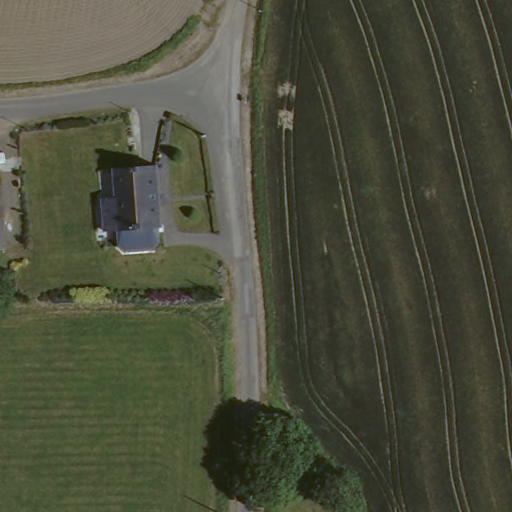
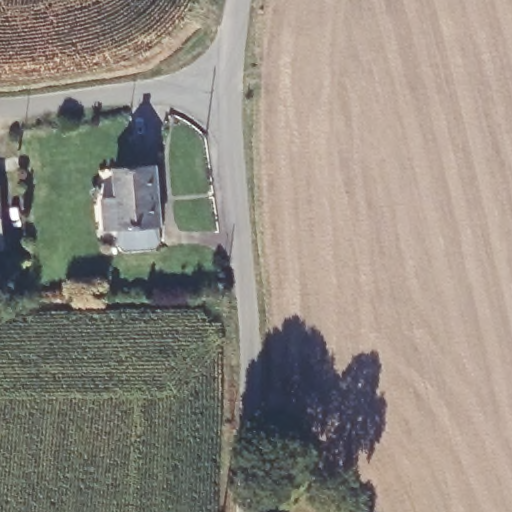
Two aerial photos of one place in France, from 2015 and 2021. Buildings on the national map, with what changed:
unchanged [(123,195),(119,165),(162,160),(169,220),(111,226),(108,197),(123,195)]
unchanged [(6,243),(0,244),(0,184),(2,184),(6,243)]

